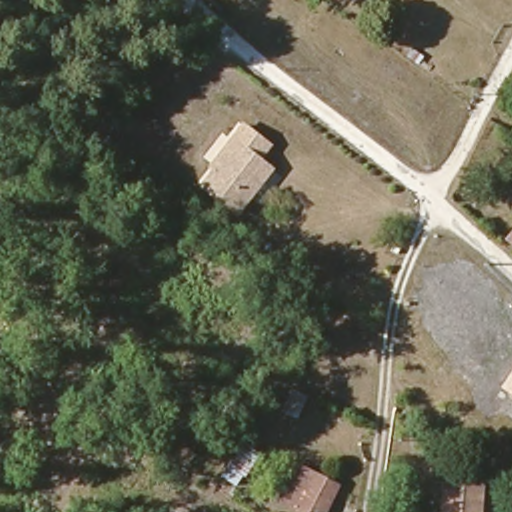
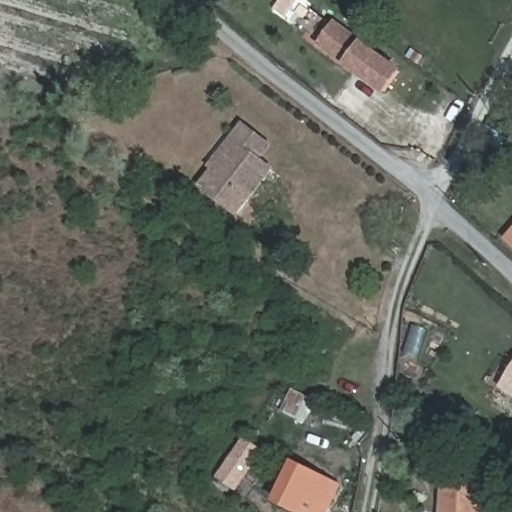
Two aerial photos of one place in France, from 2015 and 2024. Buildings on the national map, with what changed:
new [(404,71),(385,96),(345,66),(317,45),(335,21),(363,41),(404,71)]
unchanged [(266,162),(232,207),(196,180),(220,150),(230,137),(226,134),(238,119),(265,140),(254,154),(266,162)]
unchanged [(512,234),(512,240),(509,237),(512,234)]
unchanged [(406,258),(400,255),(403,248),(410,252),(406,258)]
demolished [(476,400),(451,381),(465,362),(488,380),(476,400)]
unchanged [(512,369),(512,396),(500,388),(512,369)]
unchanged [(296,422),(281,415),(292,394),(306,402),(296,422)]
unchanged [(245,482),(243,481),(236,491),(220,480),(245,446),(260,457),(245,482)]
unchanged [(302,512),(293,508),(295,504),(282,498),(299,465),(337,484),(324,512),(302,512)]
unchanged [(490,512),(451,512),(453,482),(492,486),(490,512)]

